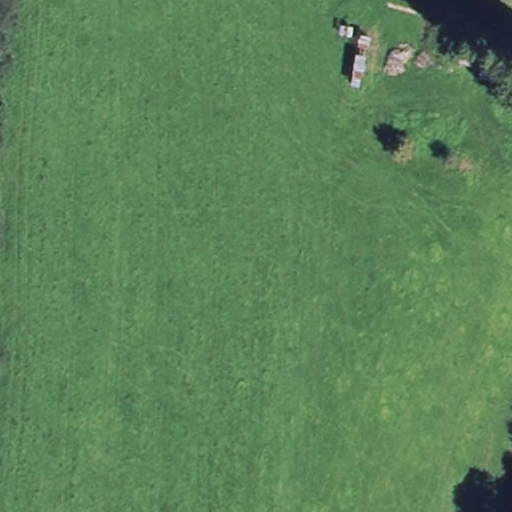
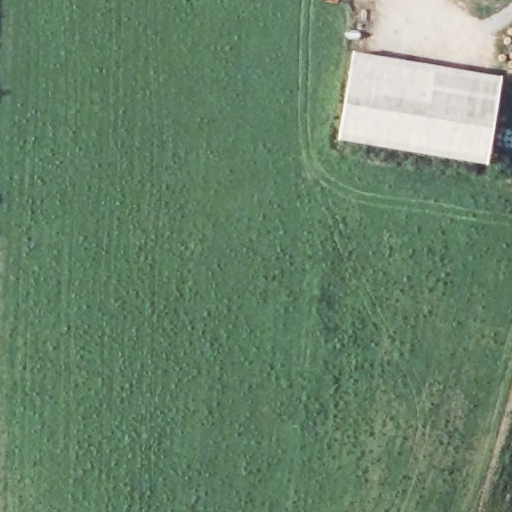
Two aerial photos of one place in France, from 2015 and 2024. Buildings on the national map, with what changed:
new [(502,79),(488,165),(338,139),(353,53),(502,79)]

